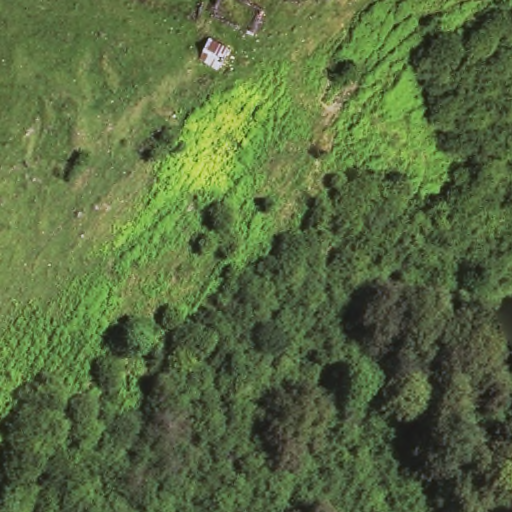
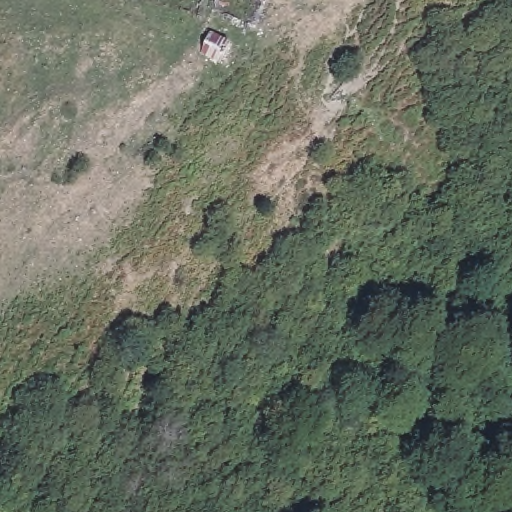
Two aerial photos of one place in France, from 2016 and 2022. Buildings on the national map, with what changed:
unchanged [(216,26),(227,32),(241,37),(229,62),(205,50),(216,26)]

